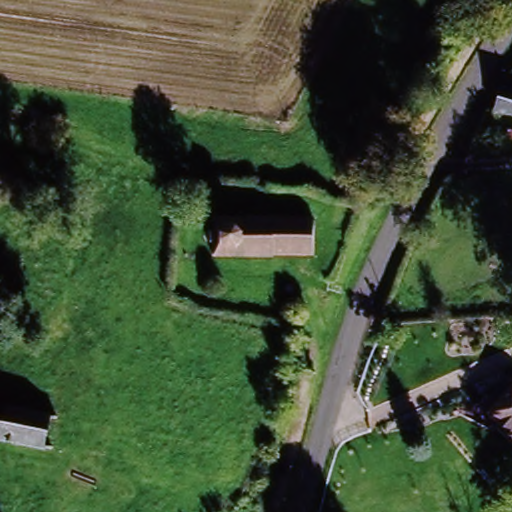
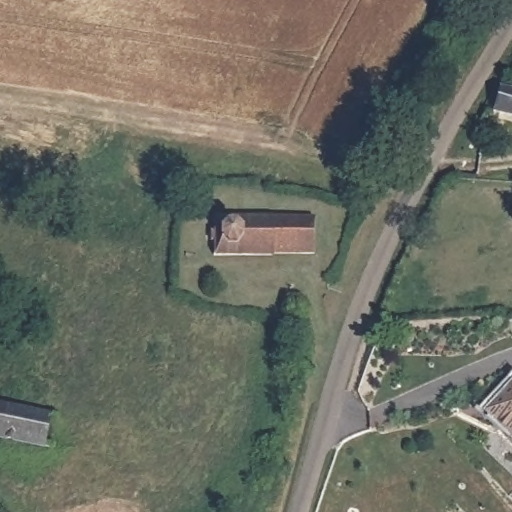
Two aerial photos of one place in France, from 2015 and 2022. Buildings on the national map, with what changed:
unchanged [(491,96),(512,99),(512,124),(487,120),(491,96)]
unchanged [(217,265),(217,226),(248,226),(248,215),(270,214),(271,225),(308,225),(309,264),(273,264),(273,273),(255,274),(255,264),(217,265)]
unchanged [(512,398),(512,443),(490,424),(512,398)]
unchanged [(54,458),(0,447),(0,415),(60,427),(54,458)]

